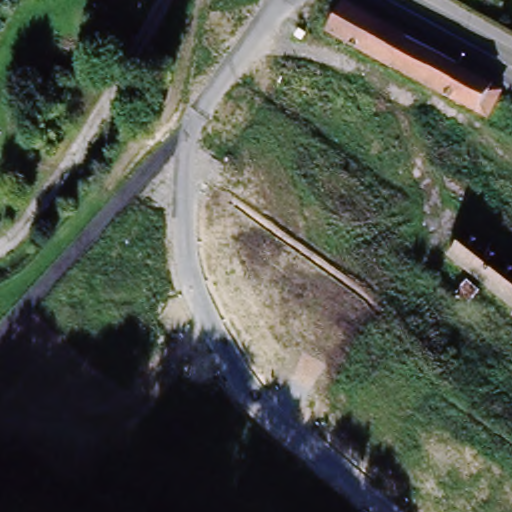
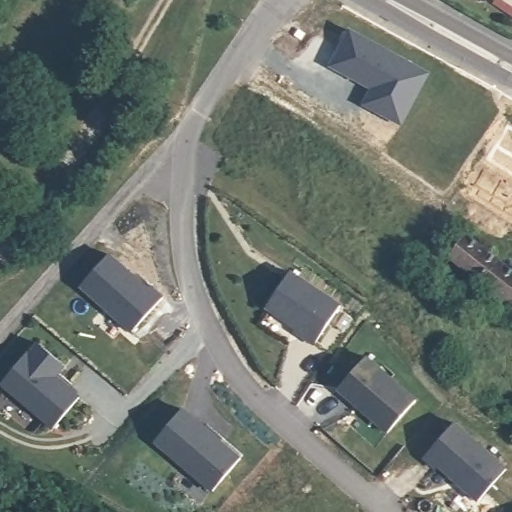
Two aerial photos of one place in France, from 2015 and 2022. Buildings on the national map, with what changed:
demolished [(478,110),(329,27),(344,1),(492,84),(478,110)]
new [(364,39),(442,82),(414,133),(381,114),(390,99),(386,97),(344,73),(364,39)]
unchanged [(512,270),(512,306),(450,258),(468,236),(512,270)]
new [(109,258),(147,293),(150,291),(162,302),(130,337),(80,290),(109,258)]
new [(290,274),(340,307),(315,346),(301,337),(303,333),(267,309),(290,274)]
new [(27,355),(30,357),(39,346),(65,367),(55,378),(80,399),(53,430),(2,385),(27,355)]
new [(367,359),(416,402),(388,434),(339,391),(367,359)]
new [(182,411),(240,460),(212,492),(155,443),(182,411)]
new [(442,473),(426,460),(455,426),(510,473),(485,503),(445,470),(442,473)]

